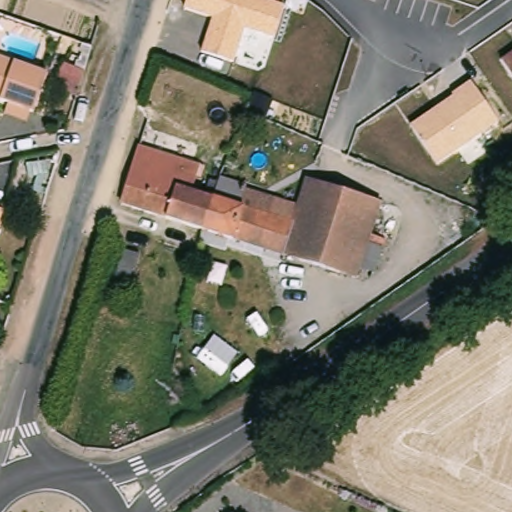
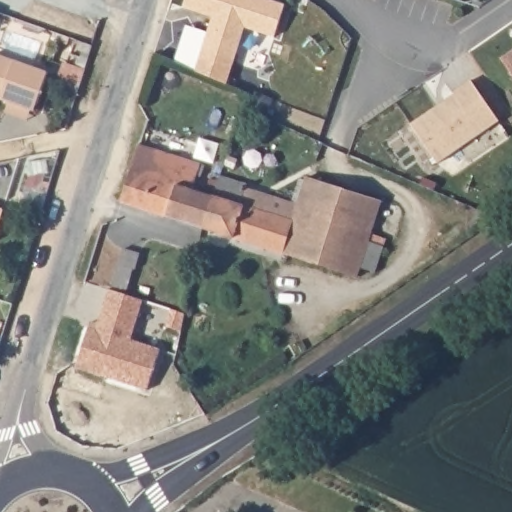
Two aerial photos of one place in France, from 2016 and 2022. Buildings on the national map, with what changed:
unchanged [(246,30),(236,62),(202,51),(212,18),(183,9),(186,0),(266,0),(284,6),(274,39),(246,30)]
unchanged [(504,60),(512,55),(512,72),(504,60)]
unchanged [(34,112),(0,99),(1,97),(0,97),(0,57),(48,74),(34,112)]
unchanged [(80,85),(57,77),(62,63),(84,71),(80,85)]
unchanged [(499,121),(437,164),(411,125),(453,96),(452,94),(470,81),(499,121)]
unchanged [(116,200),(136,143),(216,169),(196,228),(116,200)]
unchanged [(268,187),(259,209),(287,220),(302,178),(375,204),(365,234),(378,239),(365,274),(354,270),(349,281),(196,228),(216,169),(268,187)]
unchanged [(0,222),(0,210),(3,211),(0,222)]
new [(90,326),(98,328),(109,293),(143,303),(130,343),(160,352),(148,393),(76,371),(89,330),(90,326)]

